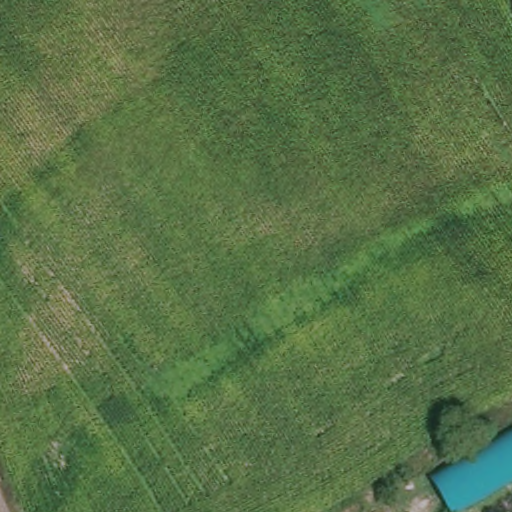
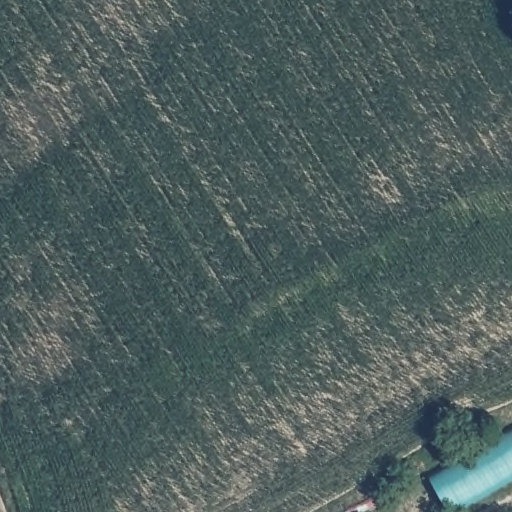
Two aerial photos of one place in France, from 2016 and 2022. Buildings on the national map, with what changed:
unchanged [(461,512),(448,512),(429,476),(512,431),(512,484),(461,512)]

